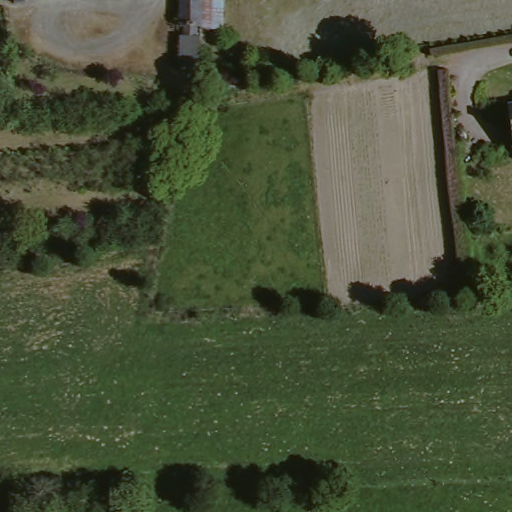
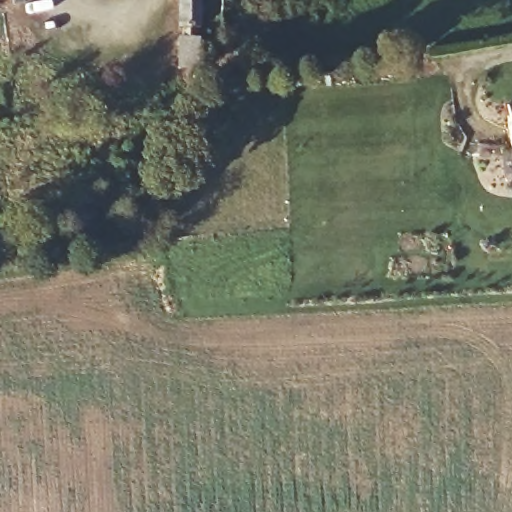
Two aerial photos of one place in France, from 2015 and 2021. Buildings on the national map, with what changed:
unchanged [(180,42),(182,31),(175,30),(178,0),(203,0),(200,32),(195,32),(195,44),(200,45),(194,74),(175,71),(180,42)]
unchanged [(226,0),(224,32),(200,32),(203,0),(226,0)]
unchanged [(512,100),(512,115),(510,100),(512,100)]

